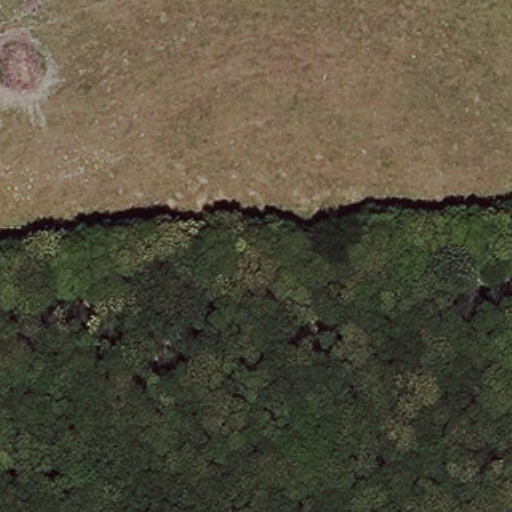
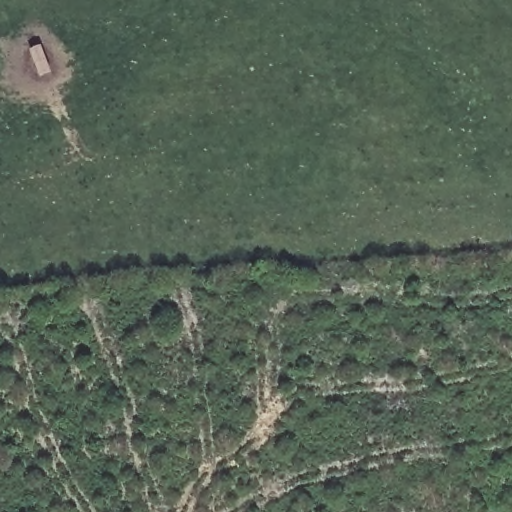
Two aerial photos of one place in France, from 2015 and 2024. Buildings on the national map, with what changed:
[]

